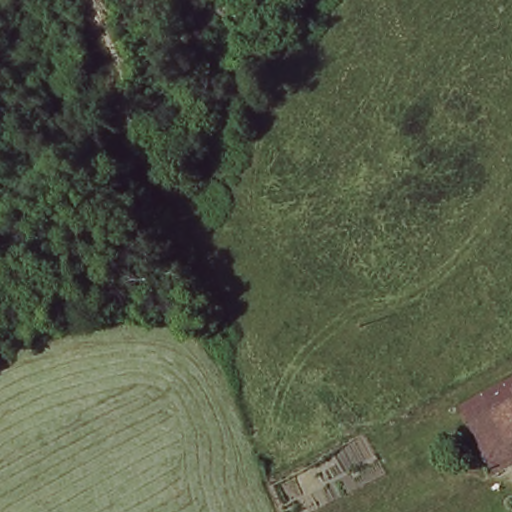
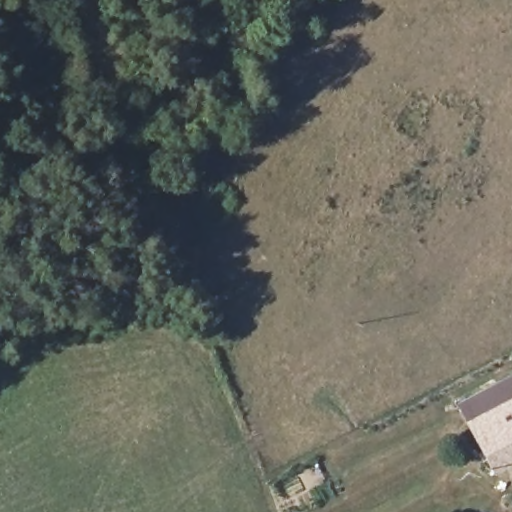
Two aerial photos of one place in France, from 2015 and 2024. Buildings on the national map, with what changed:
unchanged [(512,376),(512,457),(485,468),(459,401),(512,376)]

